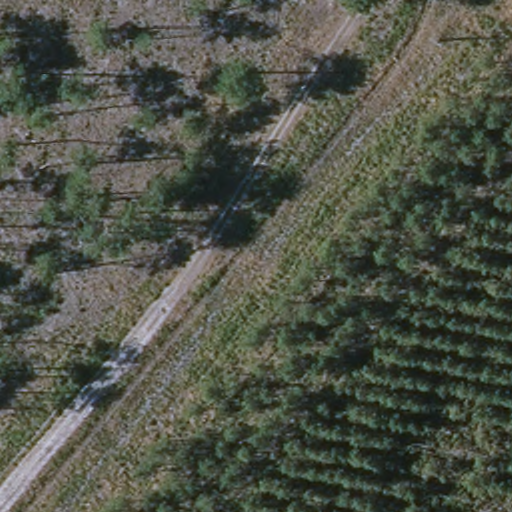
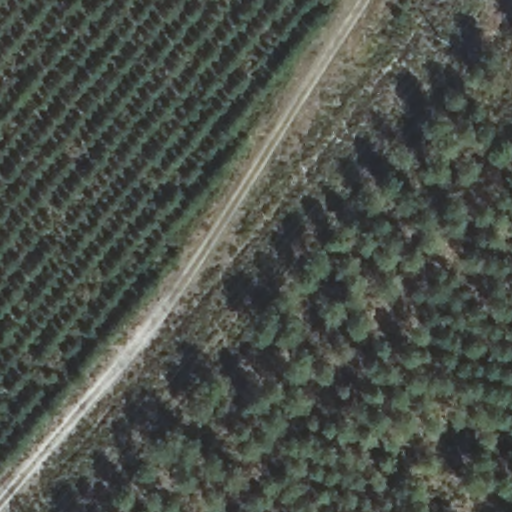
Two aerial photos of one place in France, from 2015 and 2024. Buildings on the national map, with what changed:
[]

